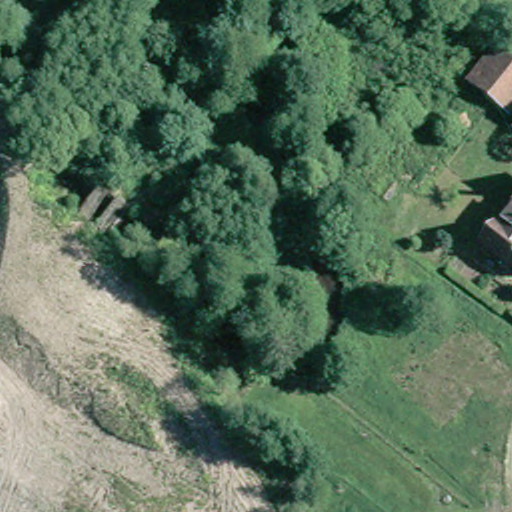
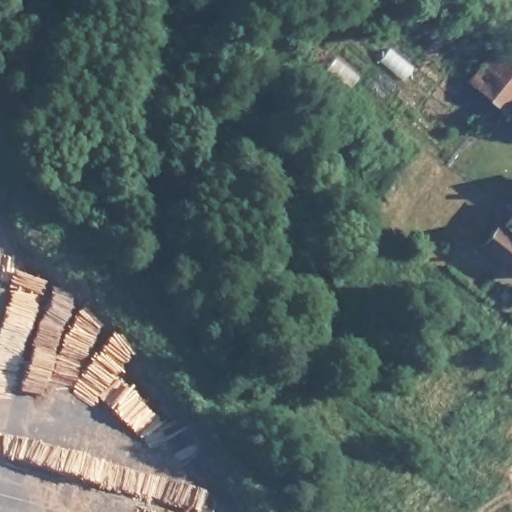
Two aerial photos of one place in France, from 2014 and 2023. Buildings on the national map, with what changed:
unchanged [(489,90),(474,79),(499,45),(512,55),(512,69),(493,94),(489,90)]
unchanged [(512,69),(512,108),(493,94),(512,69)]
unchanged [(491,246),(512,220),(512,263),(491,246)]

